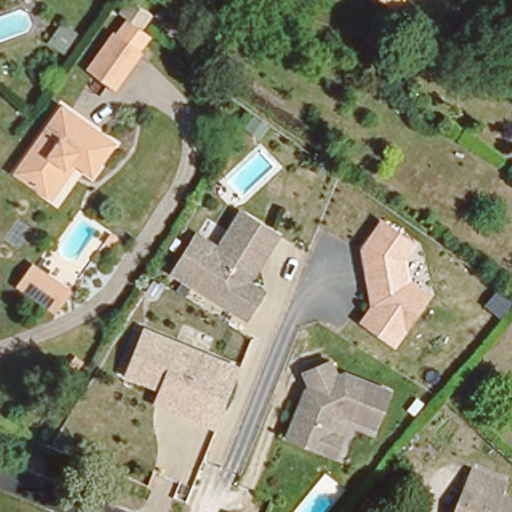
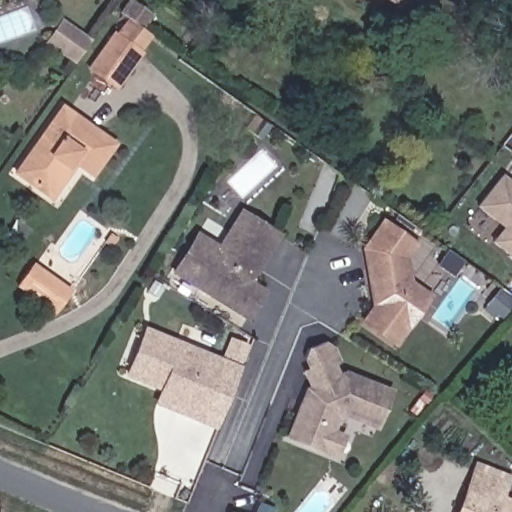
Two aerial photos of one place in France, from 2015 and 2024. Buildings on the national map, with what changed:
unchanged [(393,9),(382,0),(400,0),(393,9)]
unchanged [(115,84),(89,66),(113,32),(116,34),(120,28),(140,42),(136,48),(139,50),(115,84)]
unchanged [(44,192),(13,172),(59,106),(111,141),(89,173),(73,162),(49,196),(44,192)]
new [(512,187),(512,258),(497,246),(508,231),(481,211),(503,180),(512,187)]
unchanged [(276,230),(248,278),(262,287),(247,314),(173,268),(188,241),(198,247),(217,244),(239,206),(276,230)]
unchanged [(402,289),(404,295),(421,305),(401,343),(367,325),(376,307),(375,306),(359,251),(374,222),(408,241),(403,251),(407,279),(402,289)]
unchanged [(17,285),(31,265),(64,290),(50,309),(17,285)]
unchanged [(166,389),(130,374),(148,330),(224,360),(202,419),(184,412),(161,402),(166,389)]
unchanged [(287,435),(302,400),(307,398),(309,390),(313,389),(306,367),(335,358),(342,374),(347,377),(350,372),(395,393),(378,429),(348,414),(338,419),(324,451),(287,435)]
unchanged [(472,468),(507,482),(501,496),(512,501),(512,512),(455,512),(467,483),(472,468)]

